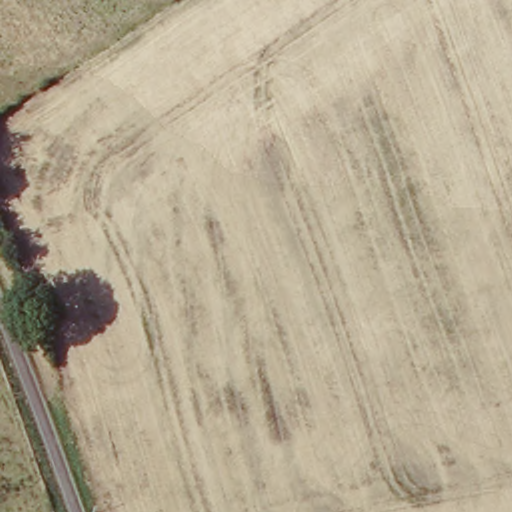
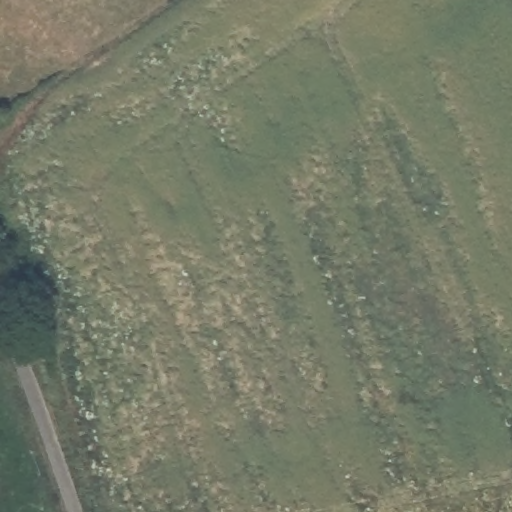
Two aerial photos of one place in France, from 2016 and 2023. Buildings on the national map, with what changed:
[]

